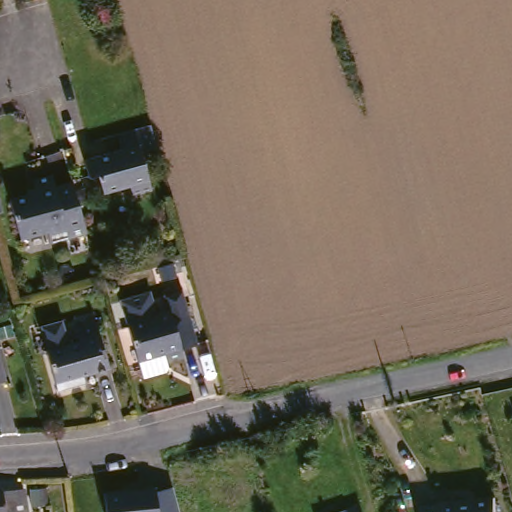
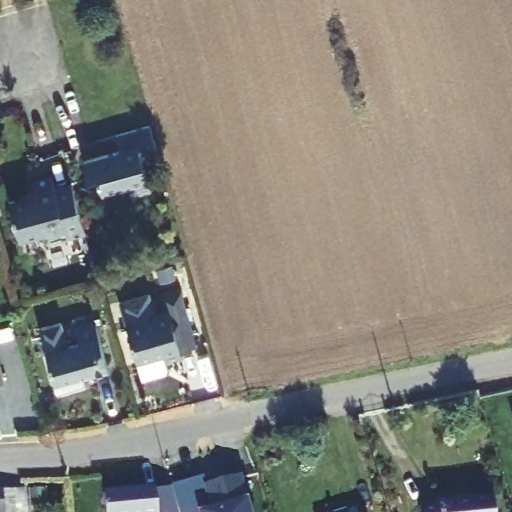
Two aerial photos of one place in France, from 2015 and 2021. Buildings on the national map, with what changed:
unchanged [(123,148),(121,136),(153,125),(160,150),(152,152),(162,191),(135,199),(132,189),(111,196),(104,176),(95,179),(90,158),(123,148)]
unchanged [(47,189),(43,176),(61,170),(65,183),(80,179),(96,231),(69,239),(65,228),(30,239),(17,198),(47,189)]
unchanged [(167,363),(145,369),(141,352),(133,318),(178,307),(180,313),(193,310),(201,342),(186,346),(187,348),(169,352),(170,358),(167,363)]
unchanged [(47,330),(69,325),(74,349),(84,347),(81,337),(105,331),(114,372),(88,379),(89,387),(61,393),(52,354),(47,330)]
unchanged [(3,346),(14,380),(0,385),(0,347),(3,346)]
unchanged [(5,404),(0,406),(0,389),(5,404)]
new [(204,479),(206,488),(242,479),(249,504),(250,512),(181,512),(175,488),(204,479)]
unchanged [(55,481),(57,500),(29,502),(28,502),(27,502),(25,483),(55,481)]
unchanged [(105,512),(103,499),(158,493),(175,488),(181,512),(105,512)]
unchanged [(21,512),(0,512),(0,492),(20,490),(21,512)]
unchanged [(499,498),(501,512),(441,512),(441,506),(499,498)]

